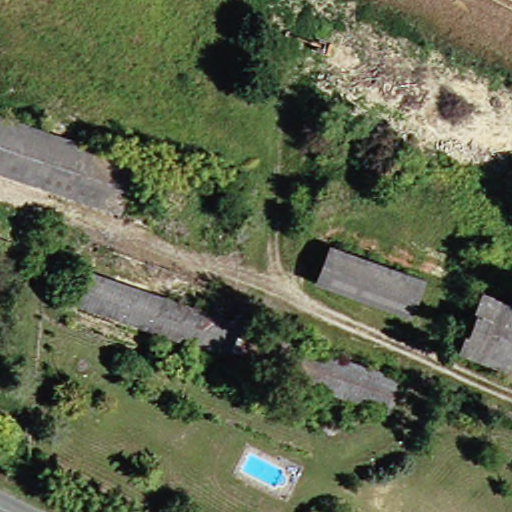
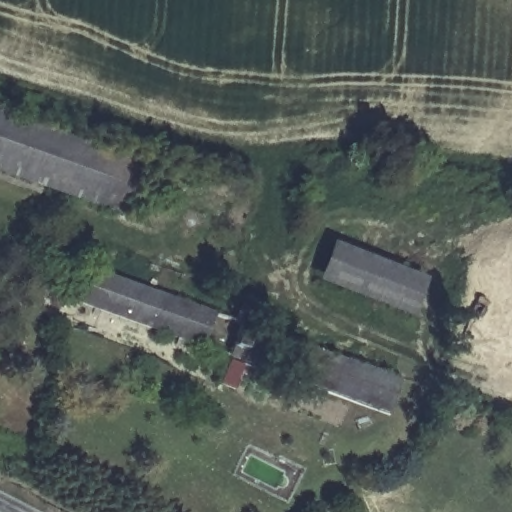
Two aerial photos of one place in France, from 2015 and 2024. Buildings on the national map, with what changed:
unchanged [(137,163),(122,203),(118,212),(117,215),(94,207),(82,203),(70,199),(35,188),(0,176),(0,116),(137,163)]
unchanged [(417,280),(406,306),(401,318),(377,308),(325,288),(311,282),(312,281),(318,268),(329,244),(354,254),(417,280)]
unchanged [(230,322),(236,305),(253,312),(246,330),(257,333),(246,366),(71,305),(82,270),(230,322)]
demolished [(512,375),(455,352),(457,346),(463,333),(476,299),(512,314),(512,375)]
unchanged [(290,383),(302,347),(392,380),(381,413),(290,383)]

